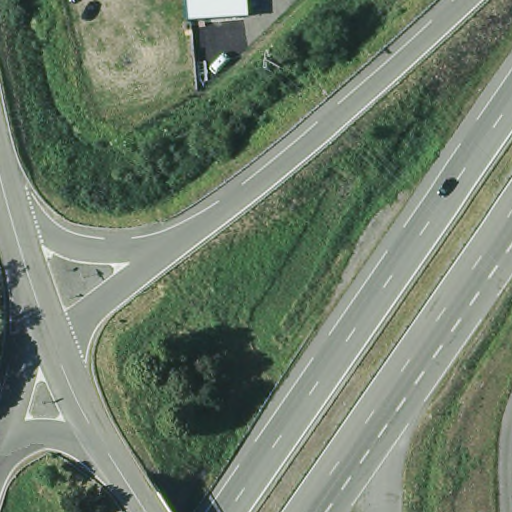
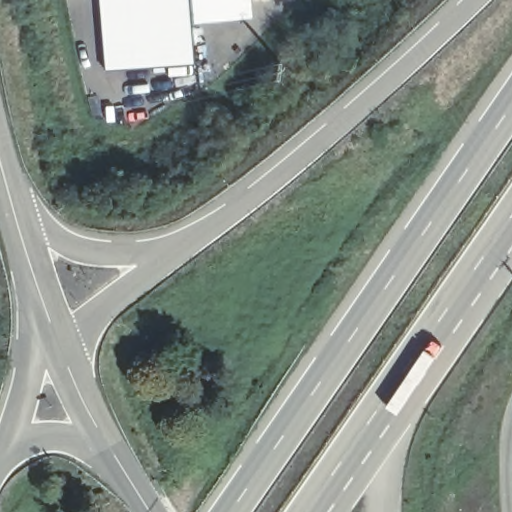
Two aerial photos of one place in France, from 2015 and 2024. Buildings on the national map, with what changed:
new [(193,64),(104,71),(98,0),(186,0),(188,23),(193,64)]
unchanged [(188,23),(186,0),(246,0),(248,16),(188,23)]

